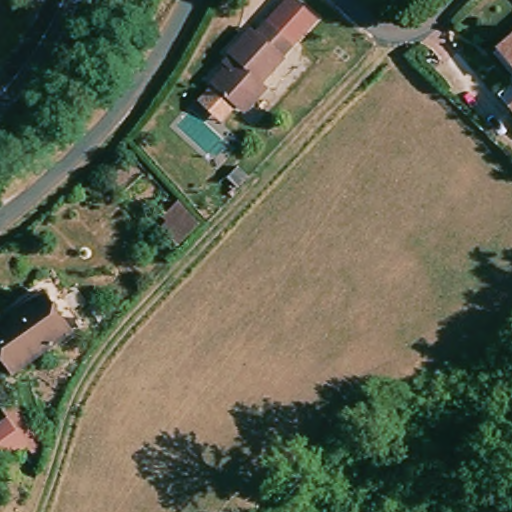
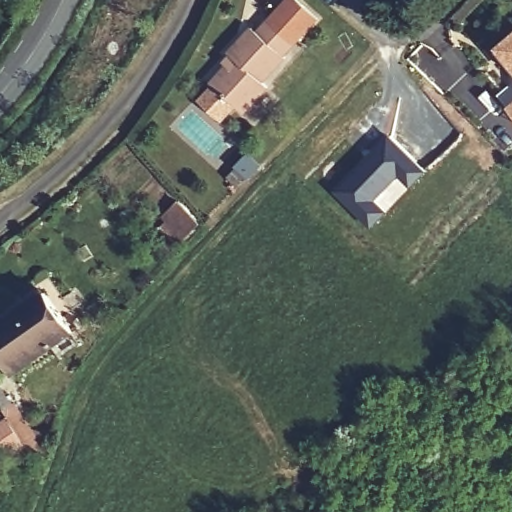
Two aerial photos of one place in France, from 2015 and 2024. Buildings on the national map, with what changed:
unchanged [(302,0),(318,14),(289,44),(264,21),(284,0),(302,0)]
unchanged [(280,58),(257,82),(262,87),(239,114),(207,84),(230,59),(224,54),(237,40),(242,44),(264,21),(289,44),(278,56),(280,58)]
unchanged [(499,45),(512,33),(512,61),(499,45)]
new [(376,200),(387,212),(374,227),(337,192),(390,135),(427,170),(411,187),(401,176),(376,200)]
unchanged [(179,244),(157,221),(179,202),(200,224),(179,244)]
unchanged [(0,354),(0,318),(2,322),(46,292),(74,332),(14,374),(0,354)]
unchanged [(0,426),(8,421),(24,443),(0,460),(0,426)]

